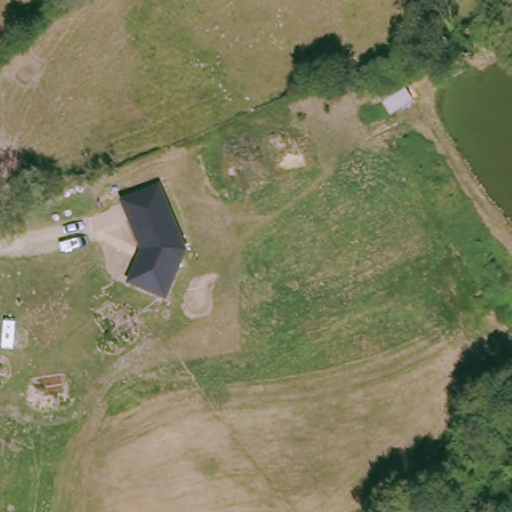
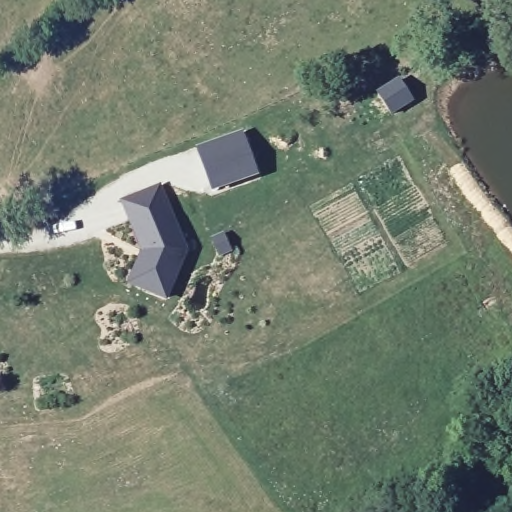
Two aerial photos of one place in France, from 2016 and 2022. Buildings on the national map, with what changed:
new [(195,150),(242,132),(260,175),(212,193),(195,150)]
unchanged [(158,185),(188,252),(166,302),(126,285),(140,252),(119,201),(158,185)]

